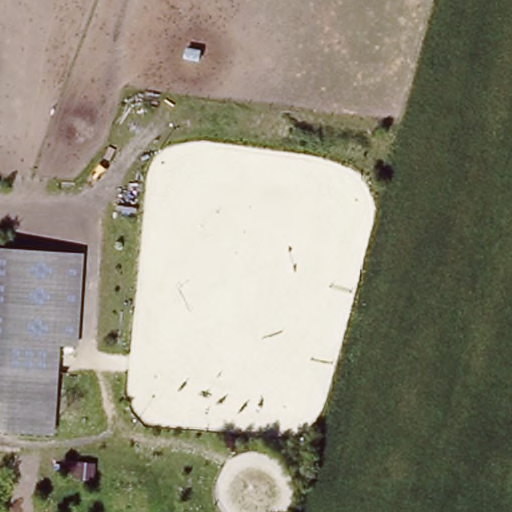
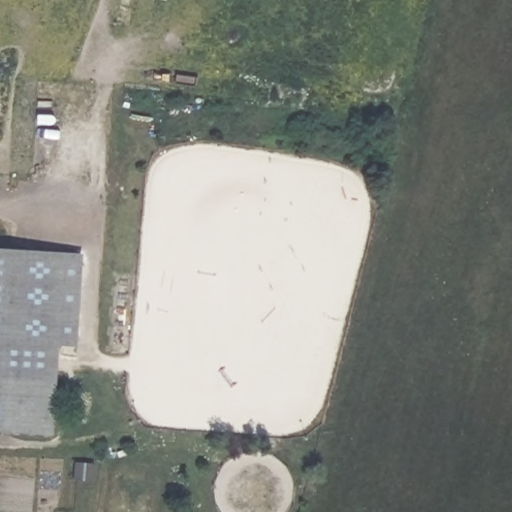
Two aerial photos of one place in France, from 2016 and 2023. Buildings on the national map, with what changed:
unchanged [(83,254),(77,345),(59,345),(53,433),(0,430),(0,248),(83,254)]

